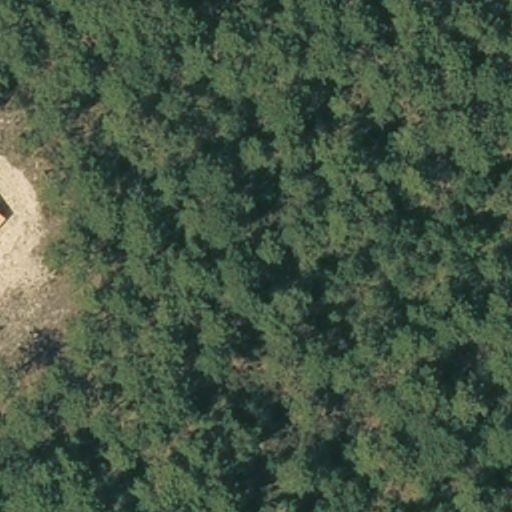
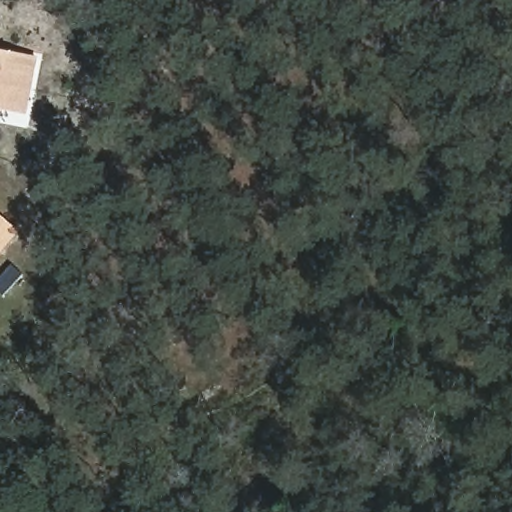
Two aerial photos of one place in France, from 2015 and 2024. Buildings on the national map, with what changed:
new [(40,56),(29,111),(0,107),(0,49),(40,56)]
unchanged [(0,252),(0,215),(16,230),(0,252)]

